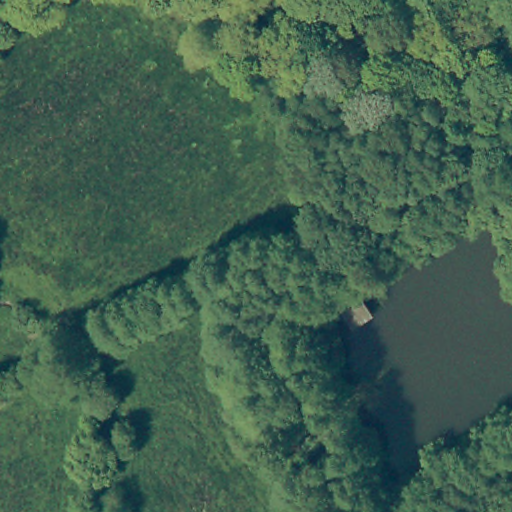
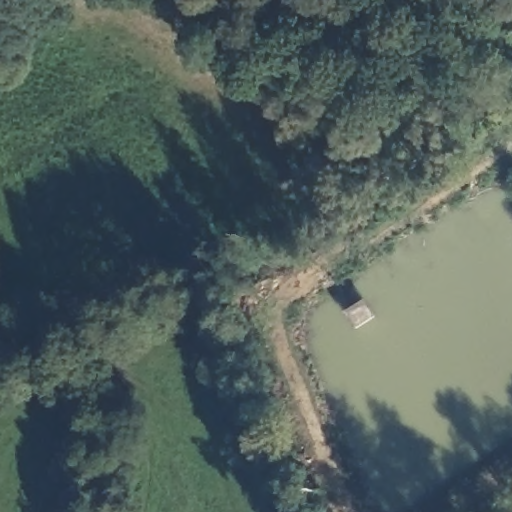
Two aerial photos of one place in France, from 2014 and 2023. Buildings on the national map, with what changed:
unchanged [(376,315),(352,331),(342,313),(365,296),(376,315)]

